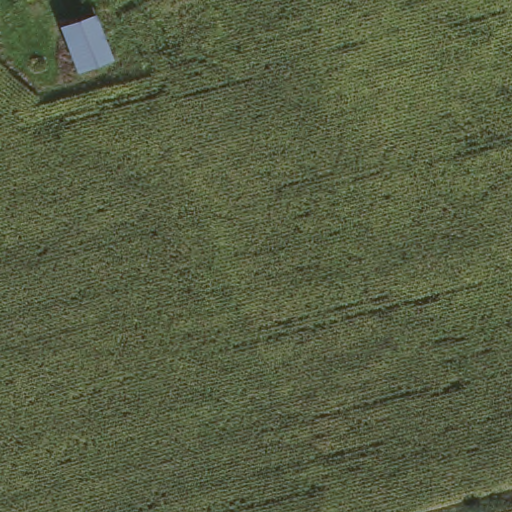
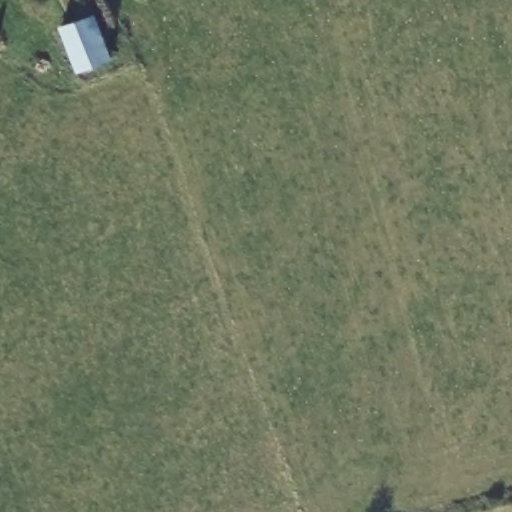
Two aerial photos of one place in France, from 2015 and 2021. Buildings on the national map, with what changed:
unchanged [(96,14),(109,59),(77,69),(65,24),(96,14)]

